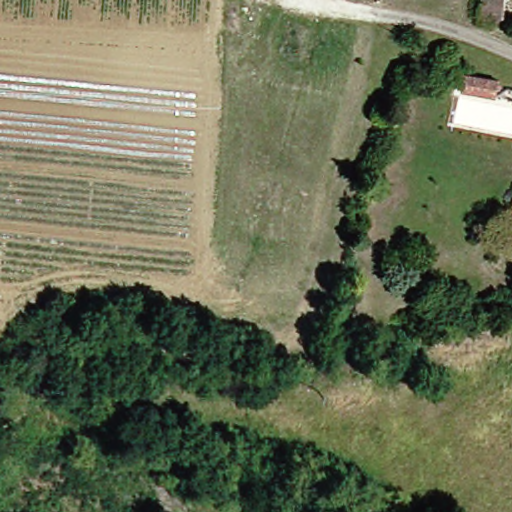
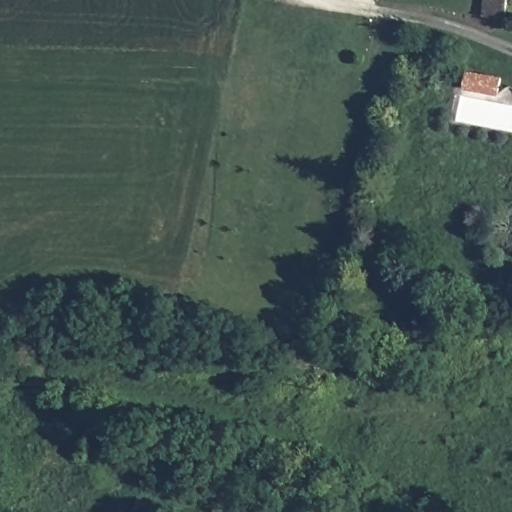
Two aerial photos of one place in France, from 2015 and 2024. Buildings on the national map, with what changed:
unchanged [(475,19),(476,0),(512,0),(512,15),(475,19)]

